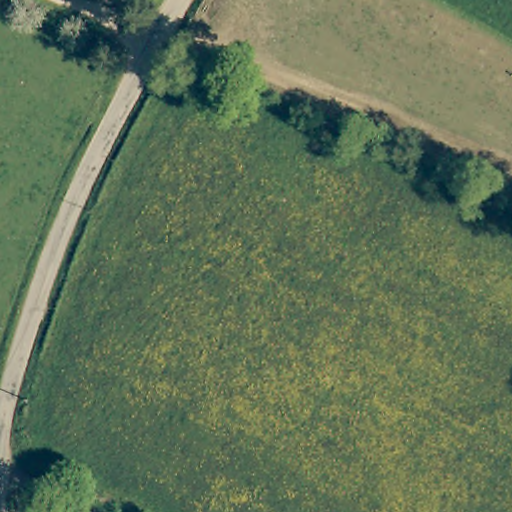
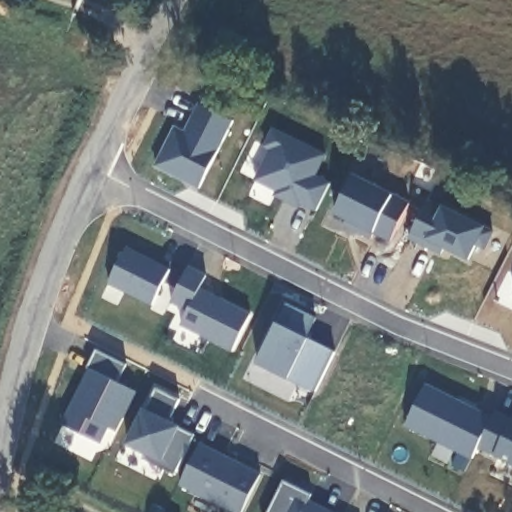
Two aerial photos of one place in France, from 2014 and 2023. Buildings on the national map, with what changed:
new [(185,135),(192,122),(199,106),(233,124),(199,191),(155,169),(175,130),(185,135)]
new [(271,152),(265,149),(273,131),(326,158),(315,179),(330,186),(317,213),(302,206),(299,210),(275,198),(277,193),(256,183),(271,152)]
new [(353,178),(410,206),(392,243),(375,235),(372,241),(345,227),(347,221),(335,215),(353,178)]
new [(427,204),(443,211),(444,209),(493,234),(485,250),(477,246),(469,261),(445,250),(442,256),(410,240),(427,204)]
new [(126,251),(170,273),(152,308),(109,286),(126,251)]
new [(188,269),(207,279),(200,292),(251,318),(233,354),(181,327),(188,313),(171,305),(188,269)]
new [(287,307),(317,321),(307,341),(336,355),(316,395),(257,366),(287,307)]
new [(91,373),(87,371),(96,352),(127,368),(119,386),(137,395),(117,435),(108,430),(100,447),(63,428),(91,373)]
new [(426,388),(493,421),(479,449),(473,461),(407,428),(426,388)]
new [(156,391),(181,403),(170,425),(196,438),(176,478),(143,462),(146,456),(129,447),(156,391)]
new [(497,414),(512,422),(512,465),(479,449),(493,421),(497,414)]
new [(201,448),(262,478),(244,512),(229,512),(181,488),(201,448)]
new [(285,483),(313,497),(310,504),(325,512),(270,512),(285,483)]

